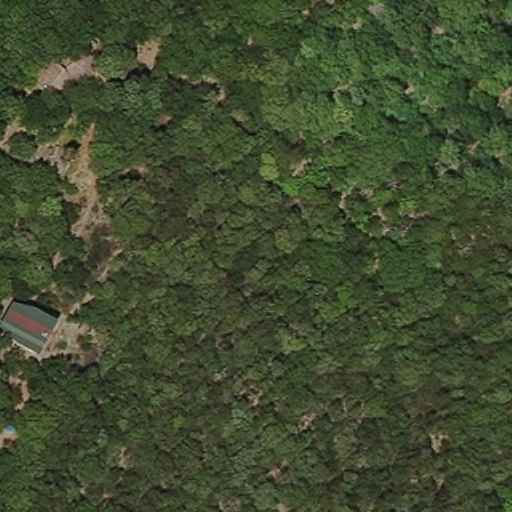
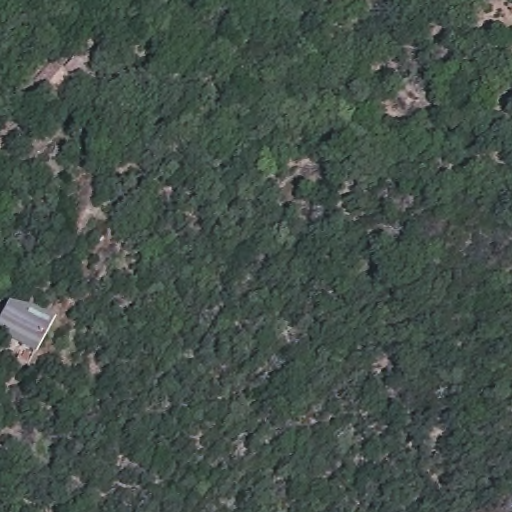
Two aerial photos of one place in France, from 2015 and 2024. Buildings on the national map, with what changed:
unchanged [(92,45),(112,75),(90,86),(73,60),(92,45)]
unchanged [(62,64),(78,81),(57,104),(37,92),(62,64)]
unchanged [(11,304),(36,312),(56,323),(37,358),(0,333),(0,323),(11,304)]

